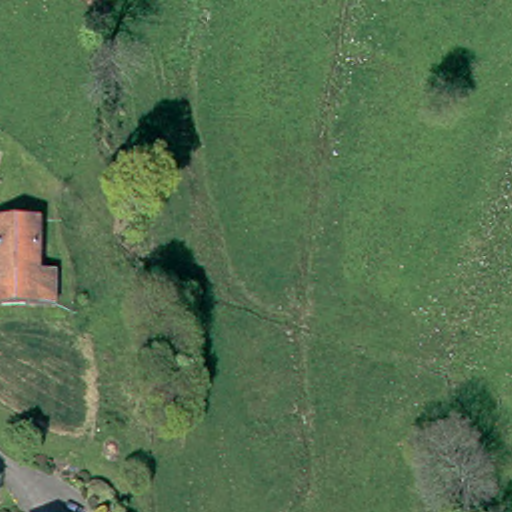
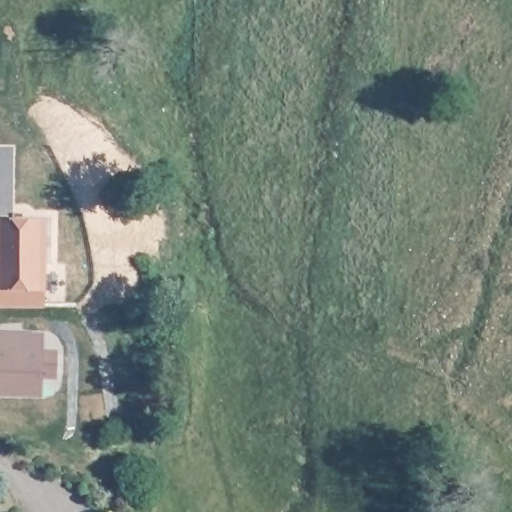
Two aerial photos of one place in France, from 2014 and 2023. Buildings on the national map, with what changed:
unchanged [(2,282),(0,258),(0,226),(37,224),(40,273),(54,272),(55,303),(41,304),(2,304),(0,304),(0,282),(2,282)]
new [(0,395),(0,331),(44,333),(44,351),(59,349),(59,379),(43,378),(43,396),(0,395)]

